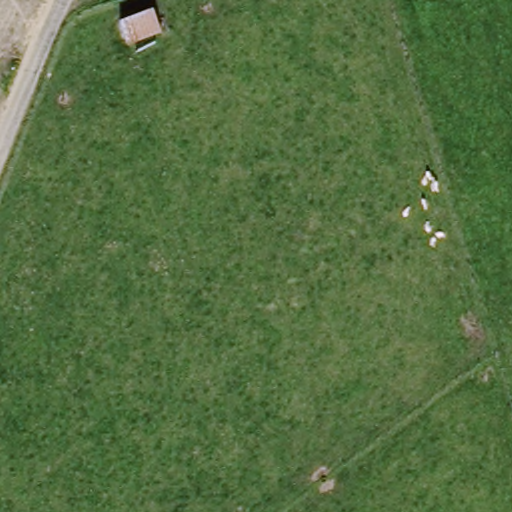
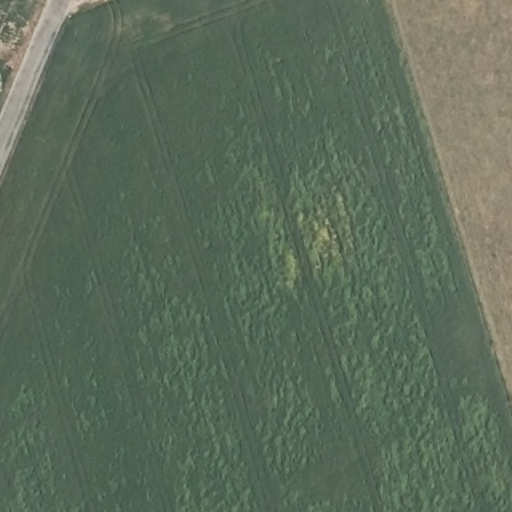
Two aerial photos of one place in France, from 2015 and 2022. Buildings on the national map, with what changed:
unchanged [(120,25),(153,12),(162,36),(127,49),(120,25)]

